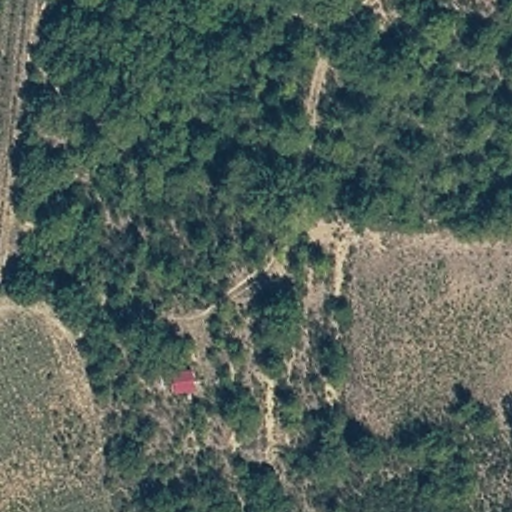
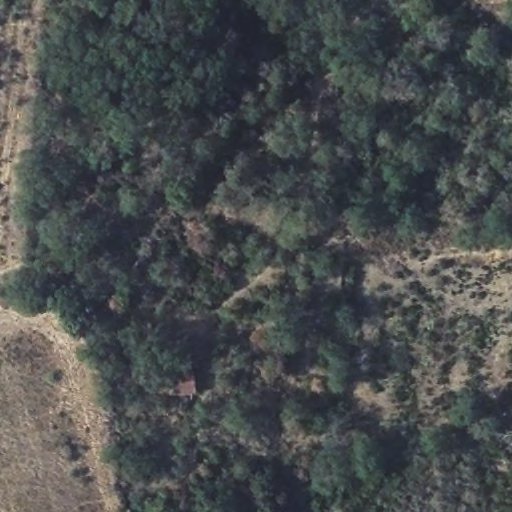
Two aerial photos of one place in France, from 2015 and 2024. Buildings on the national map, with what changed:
unchanged [(197,394),(175,396),(174,375),(192,372),(197,394)]

